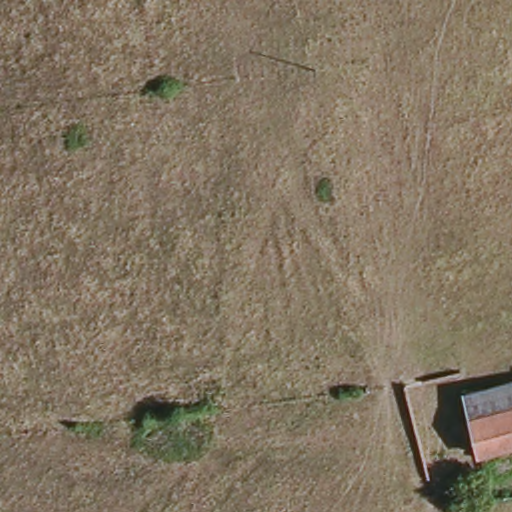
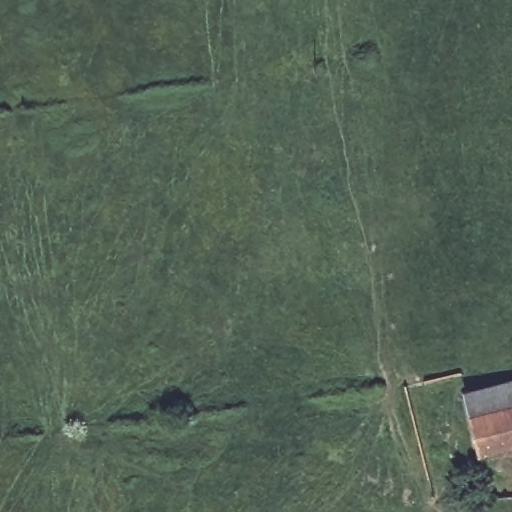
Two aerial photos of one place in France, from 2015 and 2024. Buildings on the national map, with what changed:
unchanged [(462,406),(512,385),(512,444),(481,453),(462,406)]

